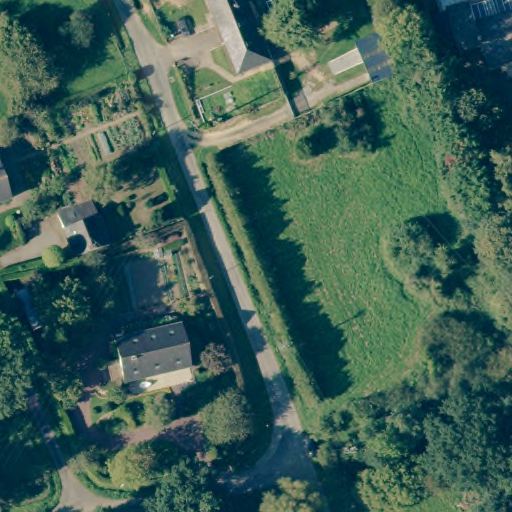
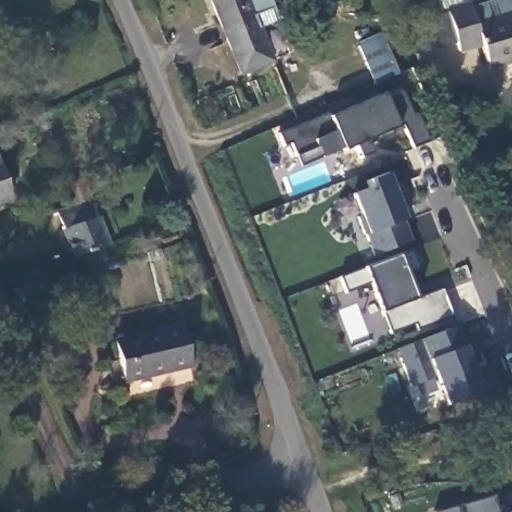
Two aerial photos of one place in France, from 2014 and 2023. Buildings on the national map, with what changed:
unchanged [(271,60),(238,73),(209,0),(247,0),(271,60)]
unchanged [(511,0),(512,0),(512,45),(488,52),(482,30),(459,36),(449,0),(473,0),(476,10),(511,0)]
unchanged [(388,33),(404,71),(393,76),(381,80),(365,42),(388,33)]
new [(411,148),(401,125),(396,126),(366,140),(373,154),(360,160),(353,146),(322,158),(299,167),(290,143),(282,145),(277,134),(329,117),(383,93),(386,100),(402,90),(410,112),(418,109),(430,142),(411,148)]
unchanged [(14,198),(0,203),(0,160),(14,198)]
new [(401,208),(406,221),(414,242),(373,254),(366,235),(350,195),(365,190),(362,182),(386,171),(393,186),(402,182),(410,204),(401,208)]
unchanged [(81,193),(78,194),(80,203),(74,205),(68,184),(77,180),(81,193)]
unchanged [(77,255),(66,228),(67,227),(63,216),(97,205),(113,244),(77,255)]
new [(417,330),(413,324),(389,332),(381,311),(371,285),(346,293),(340,277),(367,267),(398,256),(412,250),(420,271),(411,273),(421,297),(443,289),(453,315),(417,330)]
unchanged [(178,326),(187,367),(121,383),(112,341),(178,326)]
new [(443,405),(433,377),(410,386),(397,349),(458,326),(465,347),(483,392),(443,405)]
new [(491,496),(495,512),(438,512),(455,507),(491,496)]

